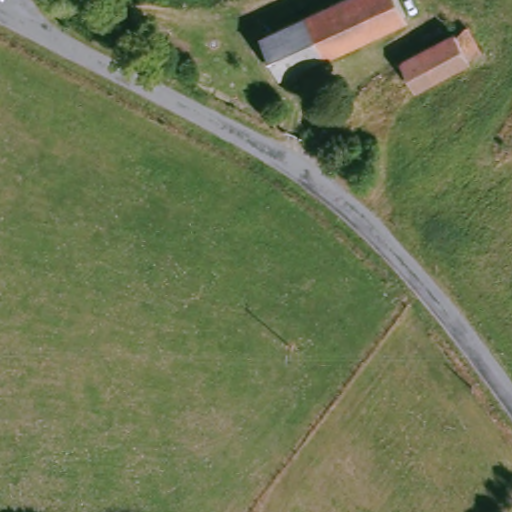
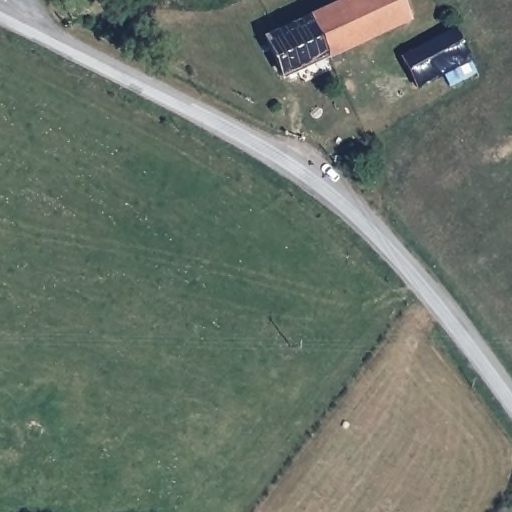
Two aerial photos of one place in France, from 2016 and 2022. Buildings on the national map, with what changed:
unchanged [(326,57),(280,78),(261,36),(308,15),(340,0),(401,0),(410,21),(326,57)]
unchanged [(458,34),(460,37),(472,31),(486,57),(472,64),(473,68),(420,92),(405,62),(403,60),(437,44),(458,34)]

